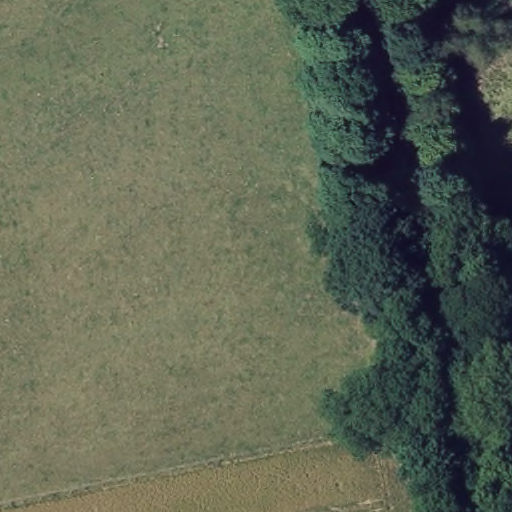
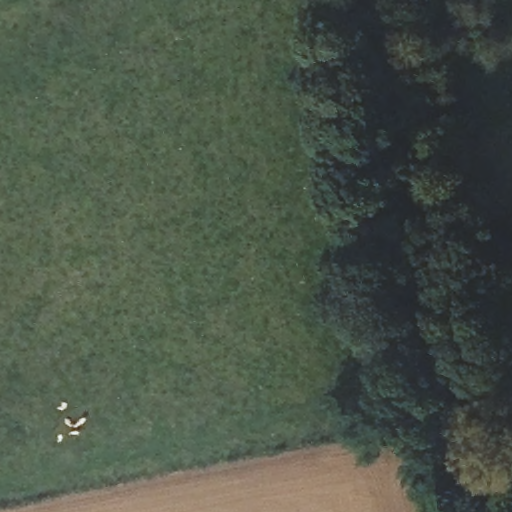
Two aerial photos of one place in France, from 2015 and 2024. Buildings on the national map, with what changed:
[]

